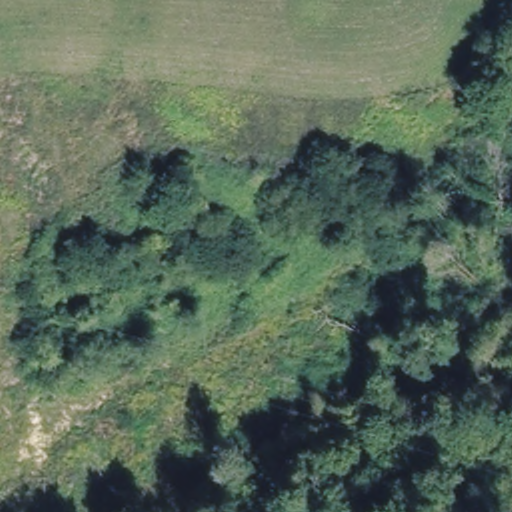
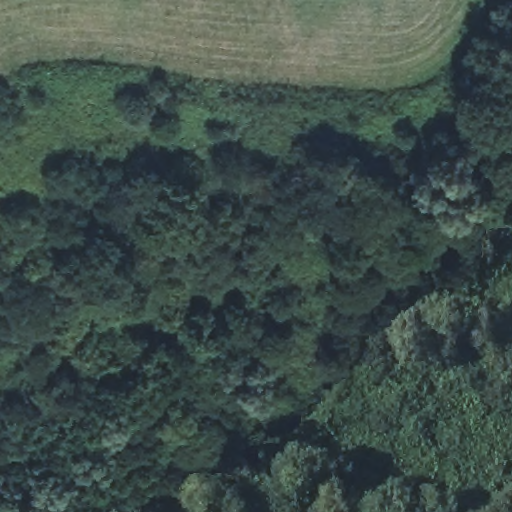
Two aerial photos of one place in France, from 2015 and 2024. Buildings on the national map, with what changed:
[]

